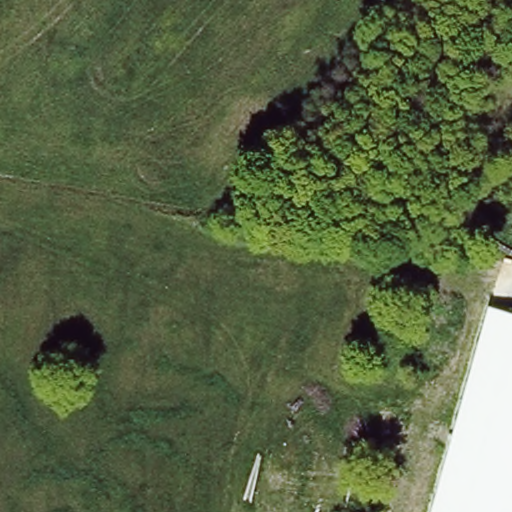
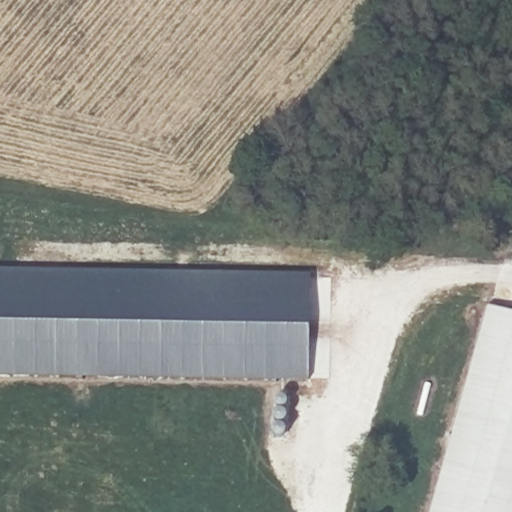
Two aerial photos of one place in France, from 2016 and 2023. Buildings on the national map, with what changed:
new [(0,376),(0,269),(312,275),(311,381),(0,376)]
unchanged [(431,512),(488,306),(512,313),(512,512),(431,512)]

